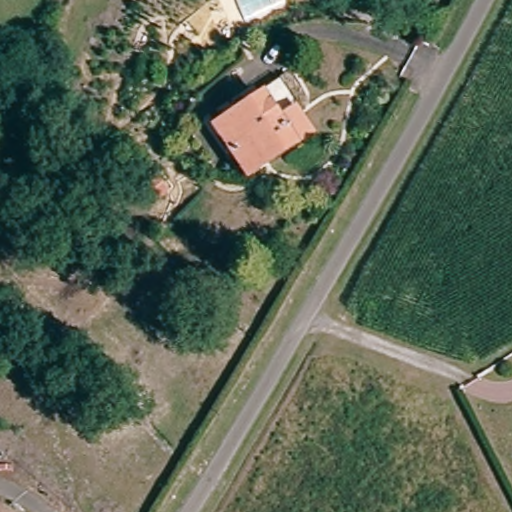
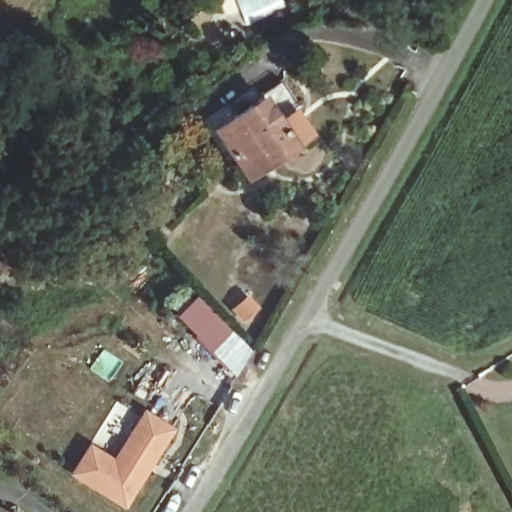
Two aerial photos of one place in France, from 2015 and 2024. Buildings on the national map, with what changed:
unchanged [(214,134),(257,105),(272,125),(285,117),(304,139),(289,149),(244,180),(214,134)]
new [(232,331),(213,350),(177,315),(197,296),(232,331)]
new [(175,426),(125,507),(69,473),(89,441),(113,457),(144,408),(175,426)]

